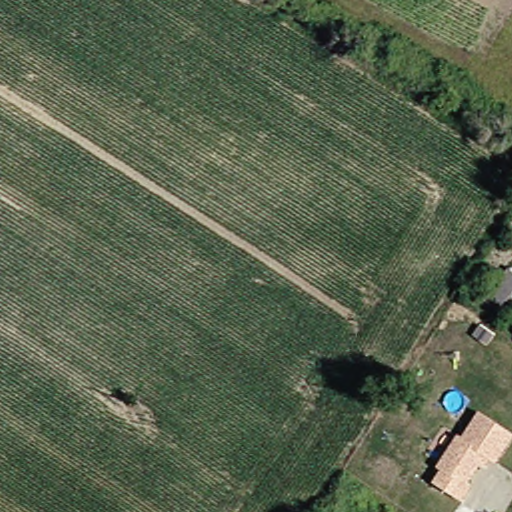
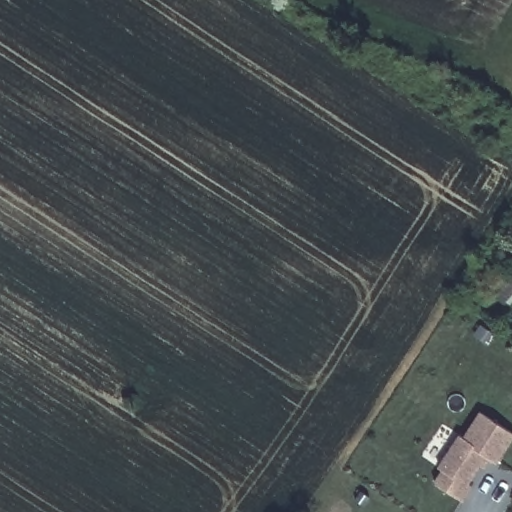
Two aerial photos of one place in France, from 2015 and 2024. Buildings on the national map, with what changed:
unchanged [(484,467),(471,486),(475,489),(467,501),(466,503),(437,483),(439,481),(446,471),(442,468),(463,437),(467,439),(485,414),(512,433),(512,448),(500,465),(494,461),(488,469),(484,467)]

